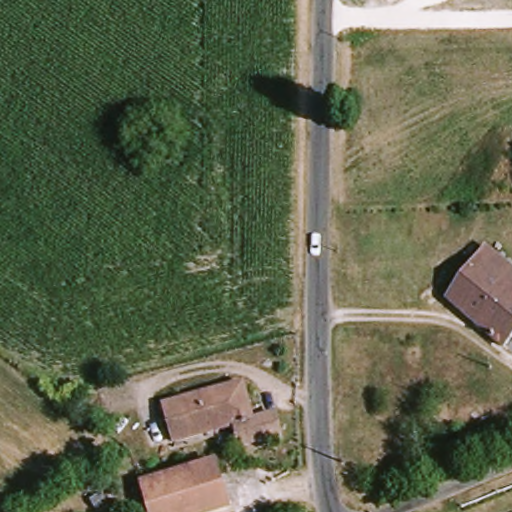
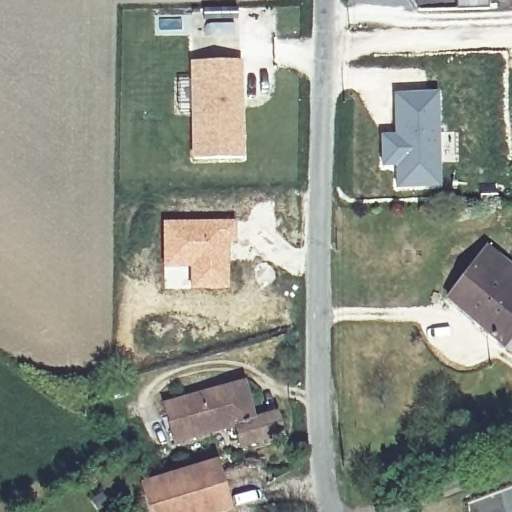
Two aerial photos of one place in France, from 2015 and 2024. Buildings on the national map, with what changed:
new [(457,7),(456,0),(489,0),(489,7),(457,7)]
new [(244,156),(193,157),(191,62),(242,61),(244,156)]
new [(437,95),(438,132),(458,131),(459,161),(438,164),(439,185),(398,187),(398,165),(383,165),(382,136),(396,135),(395,95),(437,95)]
new [(236,220),(236,241),(230,241),(229,288),(164,288),(161,220),(236,220)]
unchanged [(443,300),(483,251),(512,273),(512,331),(499,347),(443,300)]
unchanged [(238,451),(232,430),(174,446),(163,409),(239,388),(251,426),(271,420),(276,440),(238,451)]
unchanged [(152,447),(144,423),(161,417),(168,443),(152,447)]
unchanged [(141,486),(216,462),(220,475),(230,508),(218,512),(150,512),(141,486)]

